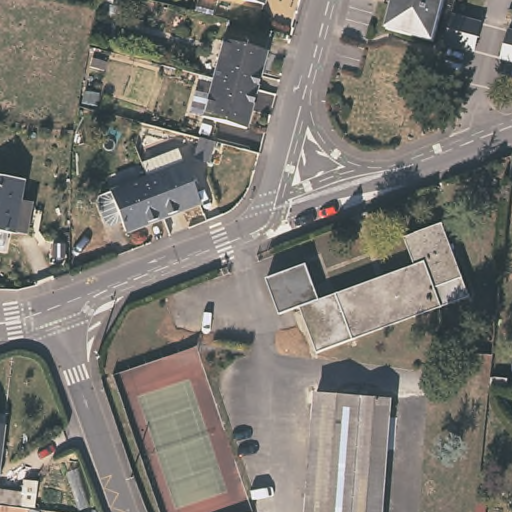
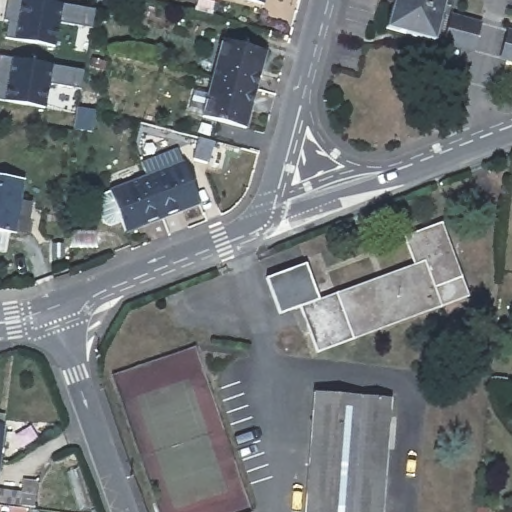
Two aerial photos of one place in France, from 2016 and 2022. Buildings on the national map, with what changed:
new [(41,0),(97,10),(94,29),(61,23),(57,47),(7,38),(10,21),(6,20),(10,0),(41,0)]
unchanged [(99,2),(99,0),(111,0),(111,5),(99,2)]
unchanged [(227,0),(265,0),(263,9),(227,0)]
unchanged [(383,34),(392,0),(441,0),(429,45),(383,34)]
unchanged [(481,22),(473,51),(445,44),(452,15),(481,22)]
unchanged [(512,30),(512,61),(502,59),(510,30),(512,30)]
unchanged [(209,82),(219,45),(262,55),(252,94),(209,82)]
new [(86,73),(82,91),(51,86),(47,110),(0,102),(0,84),(0,60),(1,57),(86,73)]
unchanged [(242,132),(183,117),(188,96),(204,100),(209,82),(252,94),(242,132)]
unchanged [(94,94),(92,105),(84,104),(86,92),(94,94)]
unchanged [(217,151),(212,172),(196,168),(201,147),(217,151)]
unchanged [(99,211),(101,206),(112,201),(112,200),(147,186),(142,172),(180,158),(185,172),(187,171),(201,211),(163,226),(127,241),(123,231),(112,235),(107,232),(99,211)]
unchanged [(0,231),(0,176),(21,180),(17,197),(27,200),(24,219),(14,217),(12,234),(7,232),(0,231)]
unchanged [(471,295),(319,351),(302,304),(279,312),(267,276),(305,262),(319,300),(416,263),(406,236),(442,222),(471,295)]
unchanged [(508,412),(498,400),(505,395),(512,403),(512,418),(508,412)]
unchanged [(315,396),(393,402),(384,512),(306,512),(315,396)]
unchanged [(6,426),(0,468),(0,417),(7,418),(6,426)]
unchanged [(487,501),(486,512),(478,512),(480,500),(487,501)]

